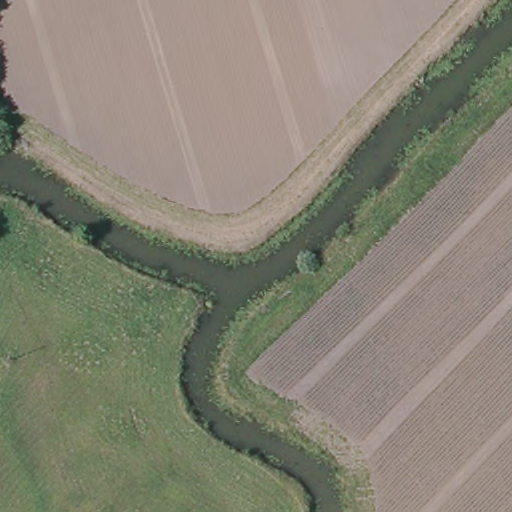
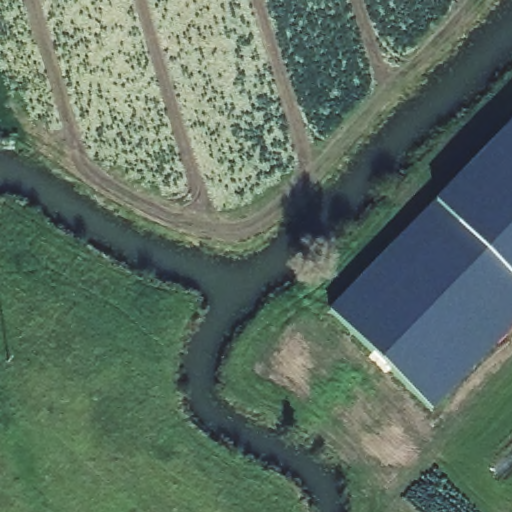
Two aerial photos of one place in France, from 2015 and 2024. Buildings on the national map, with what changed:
new [(430,410),(329,311),(512,124),(512,325),(430,410)]

